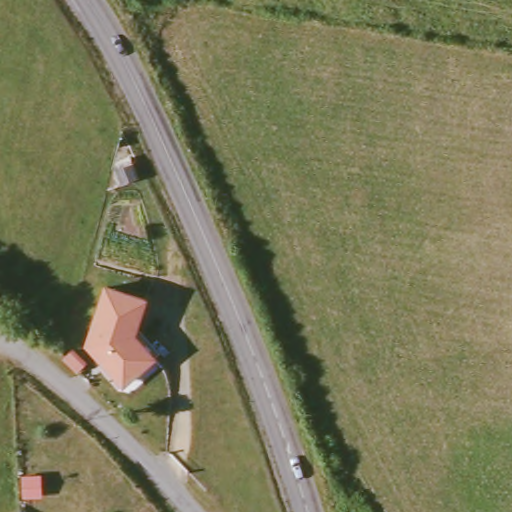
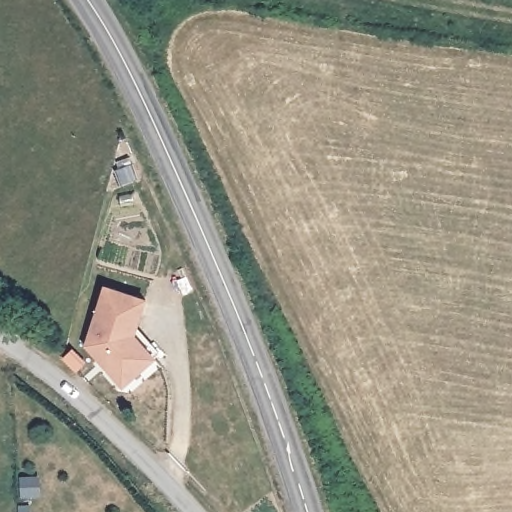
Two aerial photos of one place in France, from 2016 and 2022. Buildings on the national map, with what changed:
unchanged [(133,163),(138,178),(121,184),(116,169),(133,163)]
unchanged [(147,299),(135,334),(155,357),(129,380),(106,352),(100,357),(89,344),(107,286),(147,299)]

